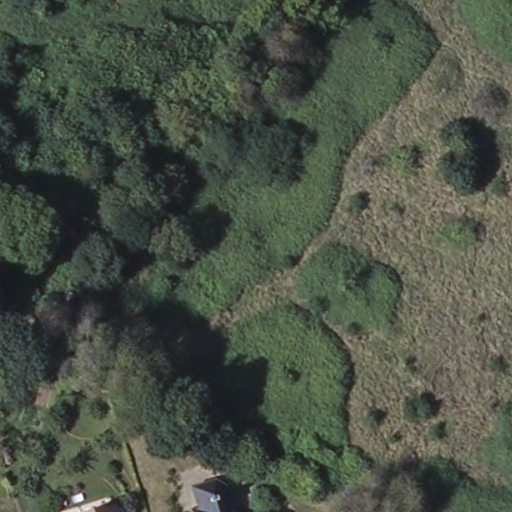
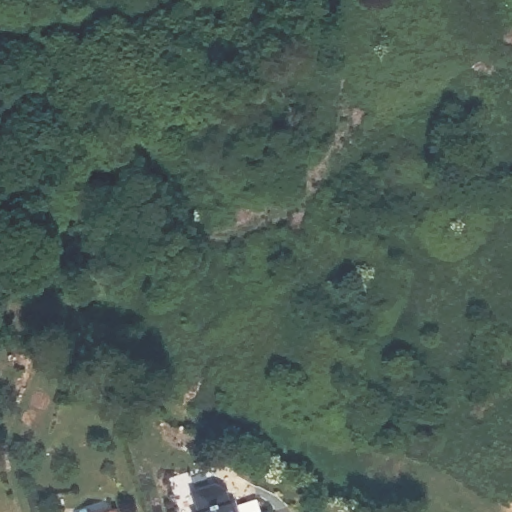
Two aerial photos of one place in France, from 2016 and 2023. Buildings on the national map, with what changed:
unchanged [(202,511),(207,509),(201,487),(224,481),(234,486),(238,500),(242,499),(246,512),(202,512),(202,511)]
unchanged [(120,505),(122,512),(99,512),(120,505)]
unchanged [(276,506),(278,512),(255,512),(276,506)]

